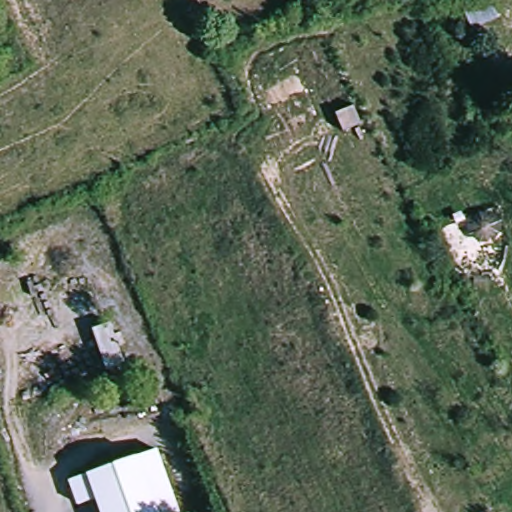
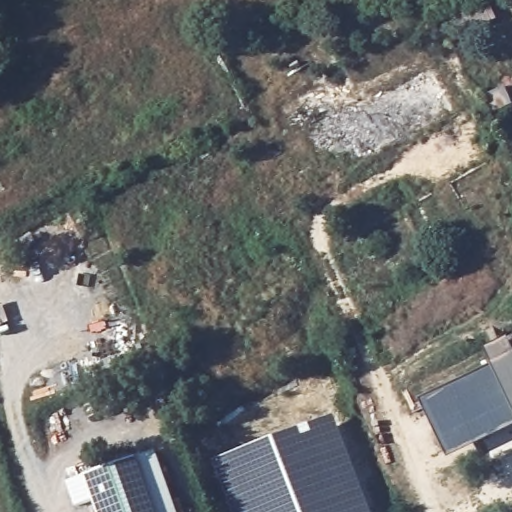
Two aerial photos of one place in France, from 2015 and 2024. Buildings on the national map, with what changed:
unchanged [(471,0),(492,0),(499,19),(471,29),(459,4),(471,0)]
new [(365,172),(360,164),(377,154),(355,114),(430,70),(459,120),(365,172)]
unchanged [(89,327),(113,318),(127,364),(107,373),(89,327)]
new [(486,349),(512,337),(512,406),(492,362),(486,349)]
new [(512,406),(512,427),(449,458),(420,400),(494,367),(512,406)]
new [(214,461),(335,414),(373,512),(234,512),(214,461)]
unchanged [(145,464),(161,459),(179,512),(161,512),(145,464)]
unchanged [(103,501),(83,508),(77,487),(96,480),(145,464),(161,512),(107,512),(103,501)]

